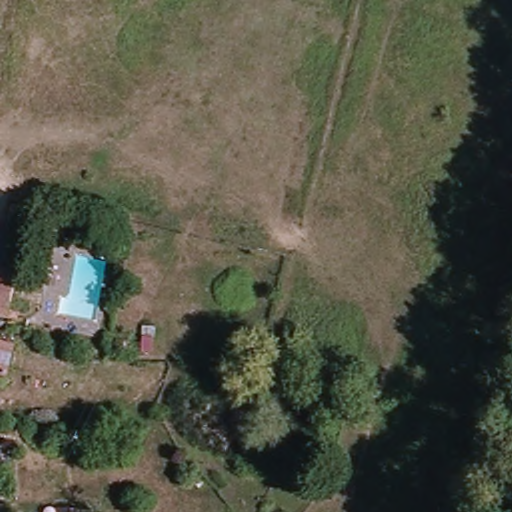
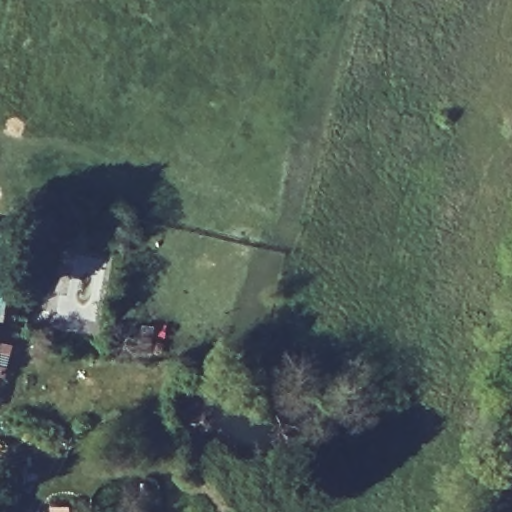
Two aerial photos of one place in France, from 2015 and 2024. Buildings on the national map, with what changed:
unchanged [(0,269),(0,232),(26,239),(19,274),(10,315),(0,313),(0,269)]
unchanged [(0,373),(0,342),(14,345),(8,375),(0,373)]

